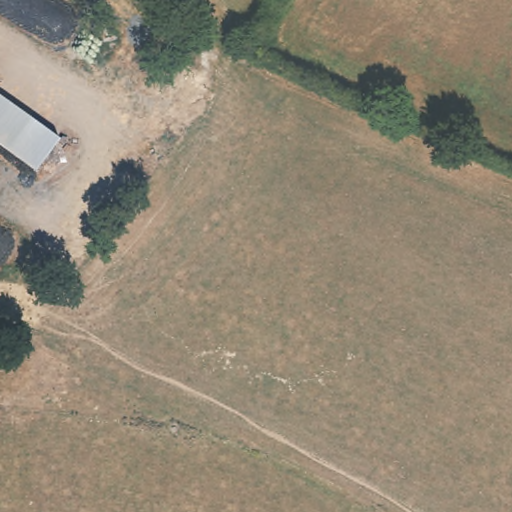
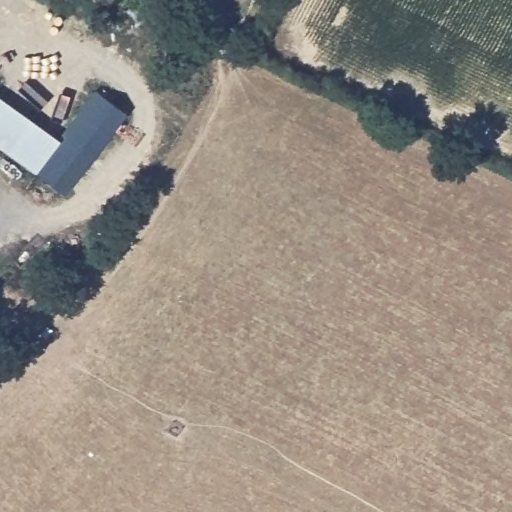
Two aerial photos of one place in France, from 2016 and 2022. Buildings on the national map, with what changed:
new [(97,91),(127,114),(65,196),(37,175),(61,139),(97,91)]
unchanged [(61,139),(37,175),(0,148),(0,99),(61,139)]

